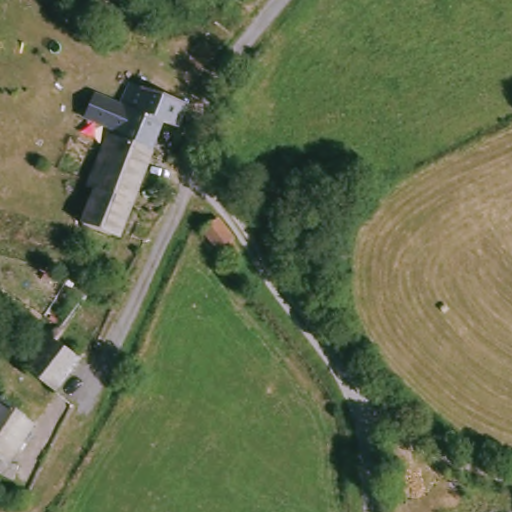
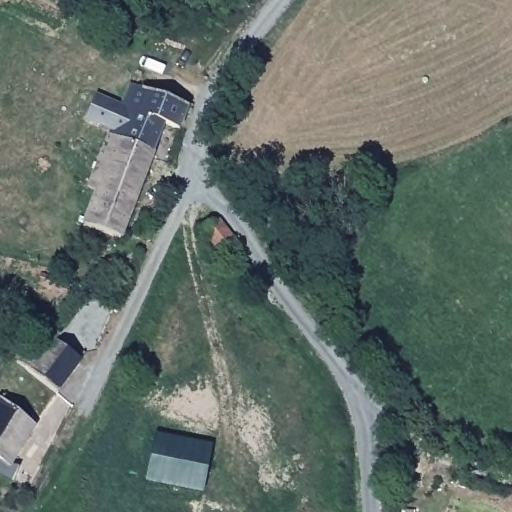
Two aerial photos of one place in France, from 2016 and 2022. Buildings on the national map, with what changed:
unchanged [(182,127),(167,122),(125,226),(121,236),(86,225),(100,189),(91,185),(115,122),(90,112),(100,90),(125,100),(133,77),(150,84),(192,101),(182,127)]
unchanged [(232,234),(230,236),(236,244),(225,254),(217,245),(215,246),(200,227),(217,214),(232,234)]
unchanged [(16,347),(27,330),(41,339),(48,331),(83,356),(64,382),(16,347)]
unchanged [(17,452),(15,462),(0,458),(0,390),(33,407),(8,448),(17,452)]
new [(147,481),(155,434),(212,445),(203,492),(147,481)]

